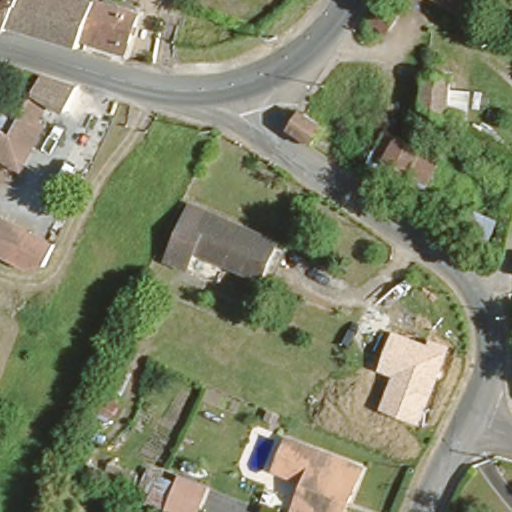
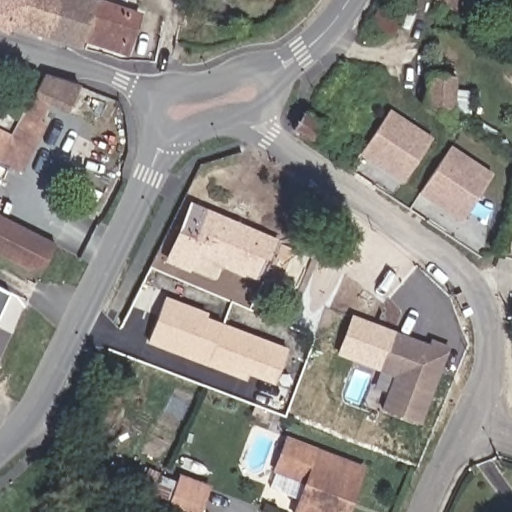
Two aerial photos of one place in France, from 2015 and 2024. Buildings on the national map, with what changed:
unchanged [(36,31),(5,21),(4,25),(0,23),(0,0),(47,0),(42,14),(36,31)]
unchanged [(76,43),(36,31),(42,14),(47,0),(109,0),(135,9),(126,38),(122,49),(77,34),(76,43)]
unchanged [(372,15),(382,0),(394,0),(397,1),(384,21),(372,15)]
unchanged [(451,0),(469,0),(467,9),(451,0)]
unchanged [(428,68),(456,71),(452,114),(426,100),(428,68)]
unchanged [(38,69),(76,81),(63,106),(45,96),(34,118),(40,120),(16,165),(0,156),(0,128),(5,131),(38,69)]
unchanged [(315,136),(293,121),(306,103),(327,118),(315,136)]
new [(392,109),(435,138),(409,175),(367,147),(392,109)]
new [(451,149),(492,177),(467,214),(426,186),(451,149)]
unchanged [(282,239),(265,277),(197,243),(192,254),(173,244),(197,196),(282,239)]
unchanged [(46,261),(29,265),(0,250),(0,210),(57,240),(46,261)]
new [(0,310),(0,290),(8,294),(0,310)]
new [(273,384),(249,374),(246,381),(147,342),(166,296),(209,312),(207,316),(288,348),(273,384)]
new [(337,354),(352,315),(395,332),(380,371),(337,354)]
unchanged [(431,339),(449,346),(447,354),(421,424),(382,411),(395,376),(380,371),(395,332),(431,346),(431,339)]
unchanged [(302,480),(271,469),(285,432),(365,463),(352,497),(346,512),(289,512),(302,480)]
unchanged [(204,512),(192,512),(177,506),(151,496),(161,475),(185,486),(192,470),(217,480),(204,512)]
unchanged [(117,497),(114,512),(101,512),(101,509),(87,507),(89,492),(117,497)]

